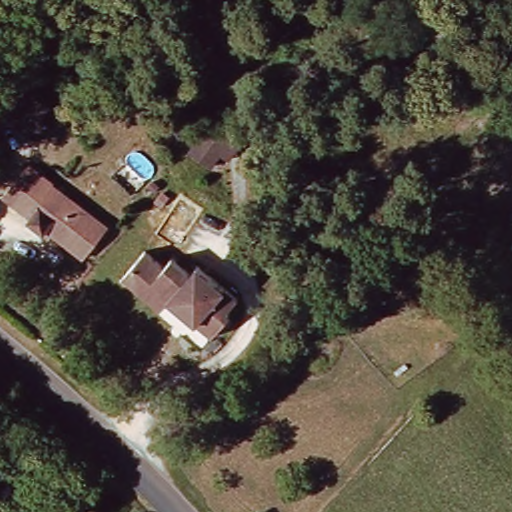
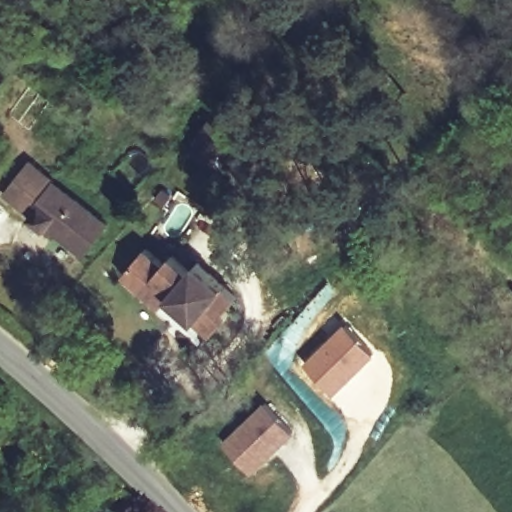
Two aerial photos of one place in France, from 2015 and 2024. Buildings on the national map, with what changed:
unchanged [(35,136),(28,130),(10,113),(34,88),(52,105),(39,119),(45,125),(35,136)]
unchanged [(221,149),(211,162),(190,145),(211,119),(231,135),(239,142),(229,155),(221,149)]
unchanged [(6,189),(38,156),(49,166),(111,232),(85,259),(52,227),(49,231),(13,195),(6,189)]
unchanged [(168,261),(175,253),(195,272),(201,265),(237,300),(225,314),(229,318),(210,339),(170,298),(163,305),(126,267),(150,243),(168,261)]
new [(345,321),(376,353),(334,394),(303,363),(345,321)]
new [(248,477),(219,448),(261,407),(290,435),(277,448),(270,454),(248,477)]

